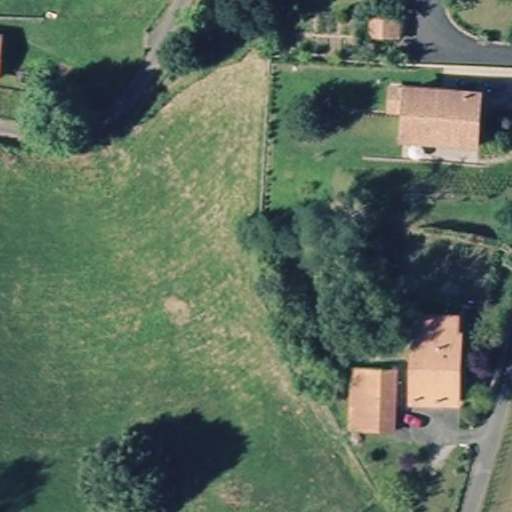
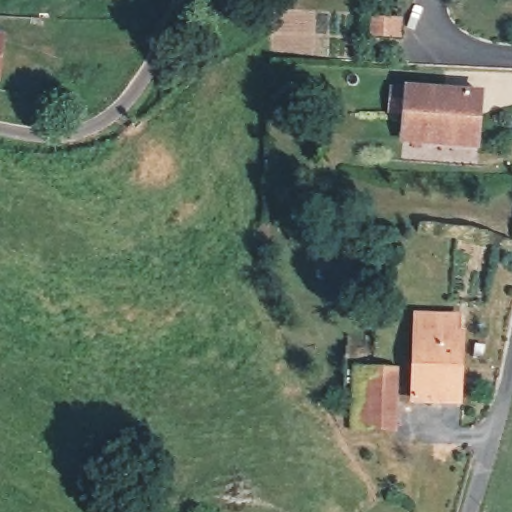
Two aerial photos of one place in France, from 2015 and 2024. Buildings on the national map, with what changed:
unchanged [(482,146),(477,146),(407,140),(410,112),(395,111),(397,88),(412,89),(481,94),(487,95),(482,146)]
unchanged [(456,341),(465,341),(457,408),(413,407),(421,320),(457,322),(456,341)]
unchanged [(364,433),(350,432),(355,369),(370,369),(388,370),(400,370),(393,429),(392,435),(364,433)]

